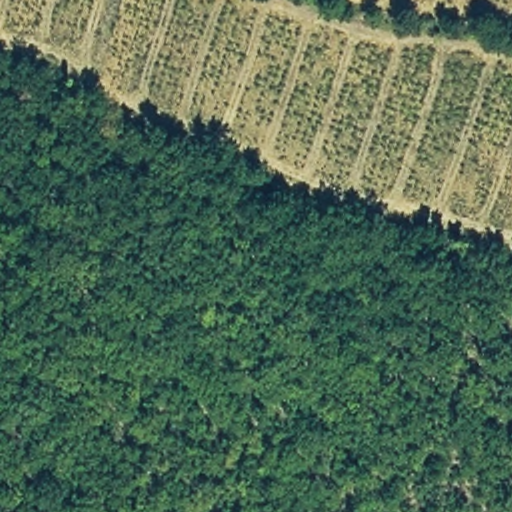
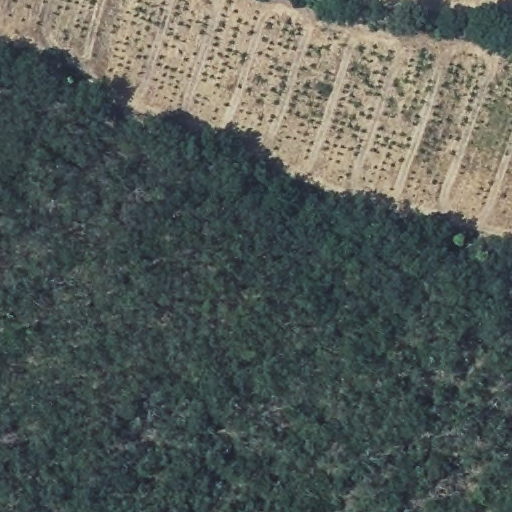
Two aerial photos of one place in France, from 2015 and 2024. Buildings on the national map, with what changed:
[]

